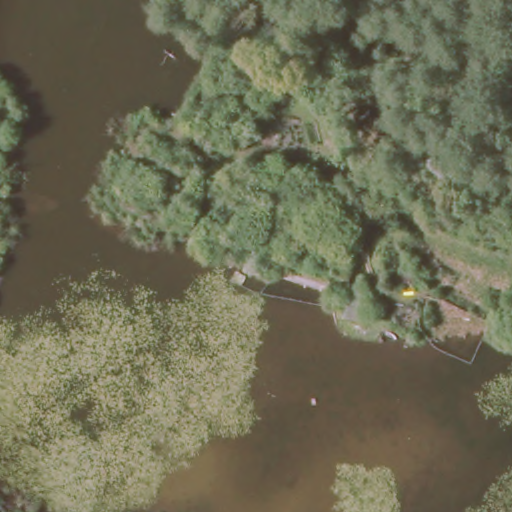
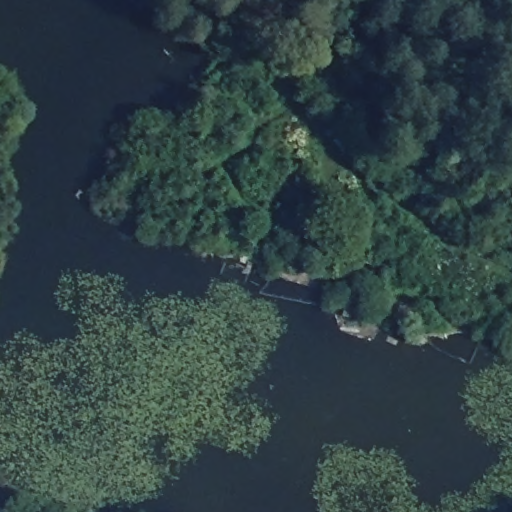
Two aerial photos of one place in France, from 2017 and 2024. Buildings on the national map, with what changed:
unchanged [(396,428),(405,433),(401,444),(390,438),(396,428)]

